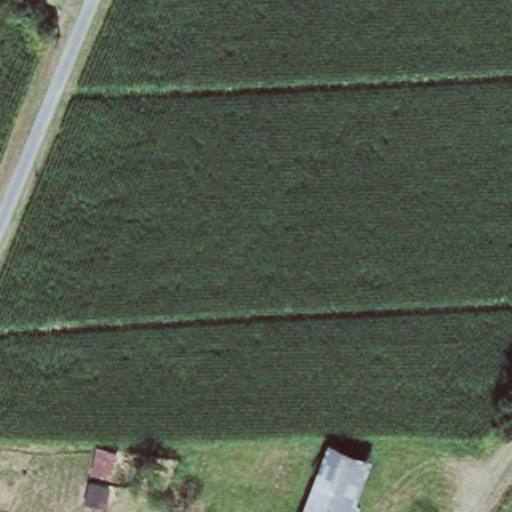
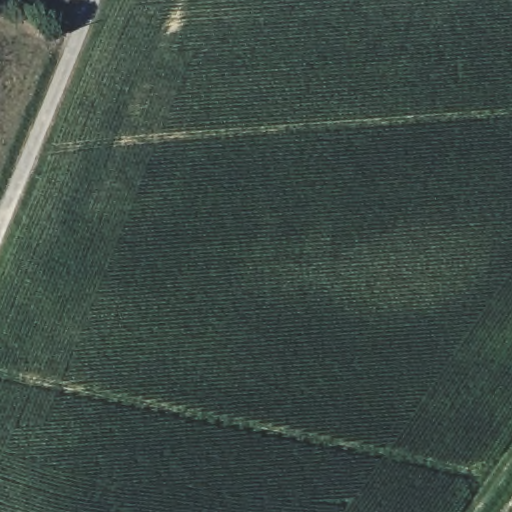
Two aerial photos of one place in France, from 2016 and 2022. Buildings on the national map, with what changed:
demolished [(305,512),(333,441),(381,460),(361,512),(305,512)]

